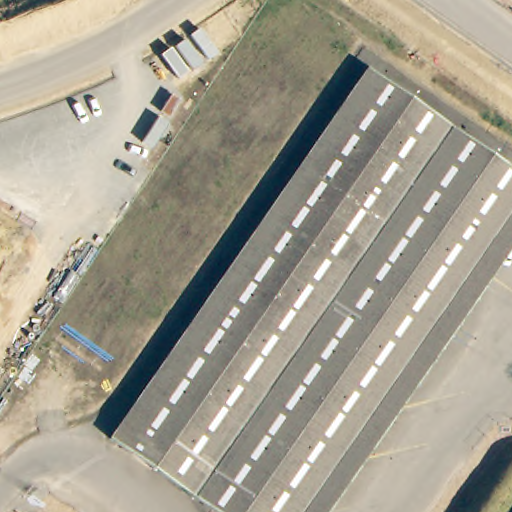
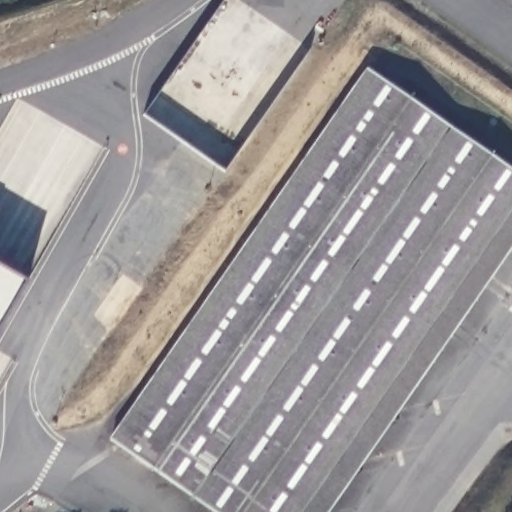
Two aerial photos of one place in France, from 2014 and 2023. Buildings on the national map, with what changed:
unchanged [(360,63),(512,167),(512,245),(326,512),(218,512),(106,432),(360,63)]
new [(0,327),(0,266),(26,281),(0,327)]

